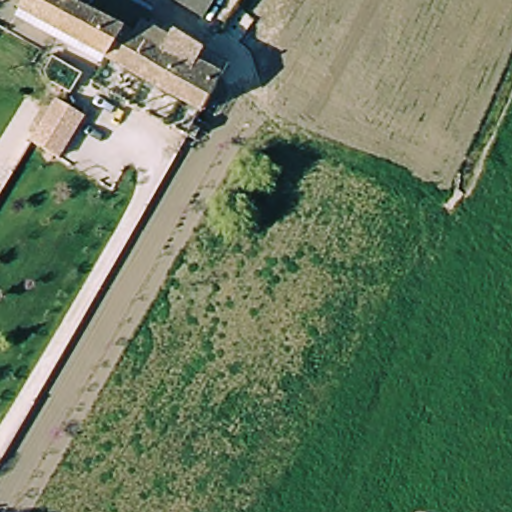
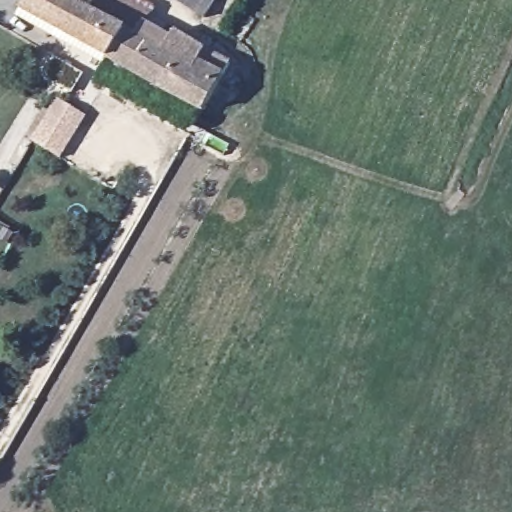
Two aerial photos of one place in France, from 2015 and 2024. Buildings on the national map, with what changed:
unchanged [(203,59),(200,64),(215,73),(209,82),(220,89),(205,116),(25,11),(30,0),(67,0),(163,54),(171,40),(203,59)]
unchanged [(163,54),(67,0),(110,0),(173,37),(171,40),(163,54)]
unchanged [(206,17),(176,0),(218,0),(206,17)]
unchanged [(56,96),(88,112),(63,154),(31,137),(56,96)]

